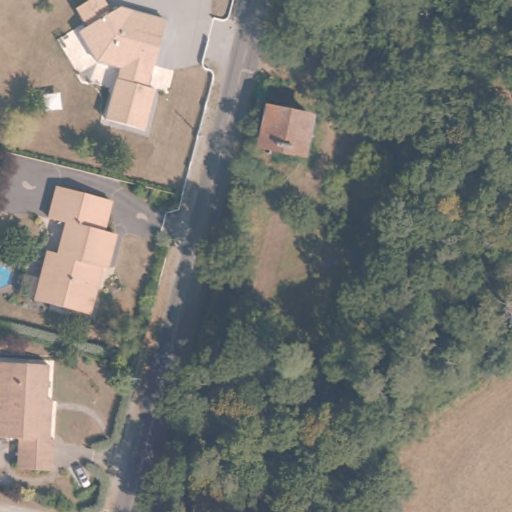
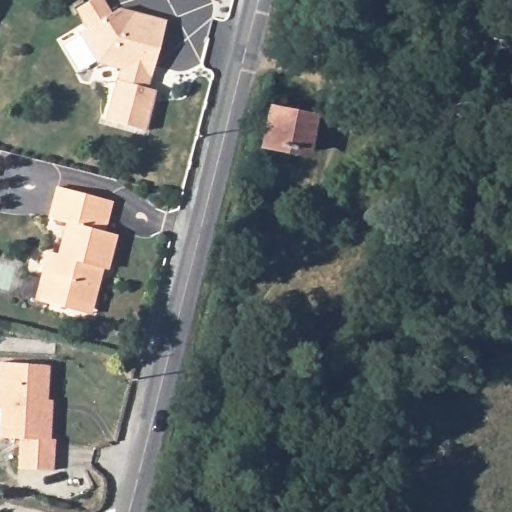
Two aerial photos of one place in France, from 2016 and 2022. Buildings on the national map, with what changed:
unchanged [(168,23),(154,78),(150,77),(148,88),(157,90),(147,130),(106,120),(117,79),(121,80),(123,70),(99,64),(83,36),(124,12),(168,23)]
unchanged [(387,15),(389,31),(364,34),(362,18),(387,15)]
unchanged [(319,122),(317,132),(310,130),(303,157),(261,146),(267,120),(261,119),(263,108),(319,122)]
unchanged [(62,306),(37,300),(24,296),(28,281),(35,249),(50,252),(57,222),(38,217),(45,183),(98,197),(89,228),(102,231),(93,265),(89,264),(80,295),(76,309),(62,306)]
unchanged [(47,360),(44,404),(50,404),(48,434),(54,435),(51,465),(16,463),(18,433),(0,432),(0,407),(0,401),(0,362),(0,356),(47,360)]

